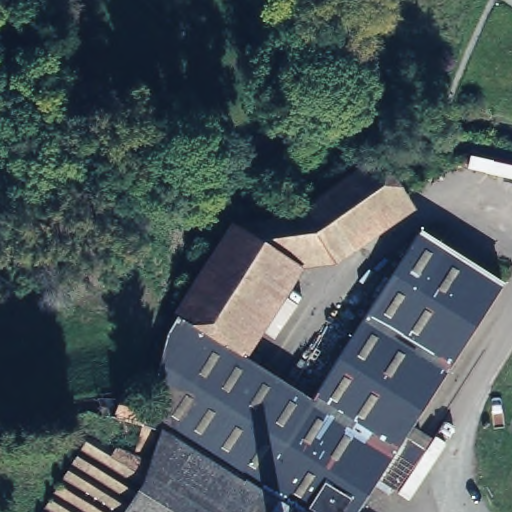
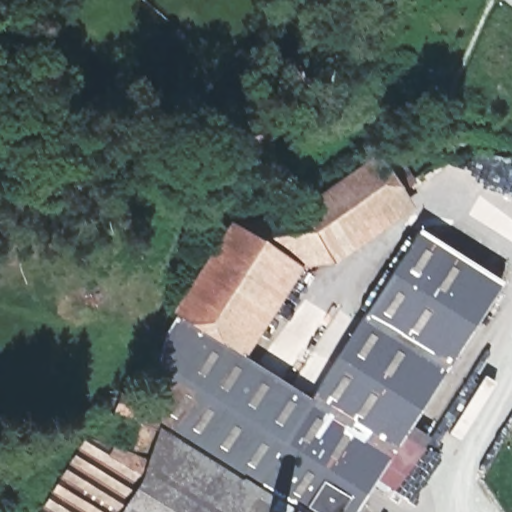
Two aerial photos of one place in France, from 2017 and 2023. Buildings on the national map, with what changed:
unchanged [(449,151),(453,149),(458,155),(415,183),(410,177),(449,151)]
unchanged [(129,447),(141,415),(115,405),(117,401),(123,386),(136,391),(146,395),(175,305),(232,219),(291,211),(375,151),(405,190),(330,245),(283,249),(225,336),(309,390),(422,224),(506,271),(412,435),(430,446),(407,485),(390,476),(370,512),(37,512),(88,430),(129,447)]

